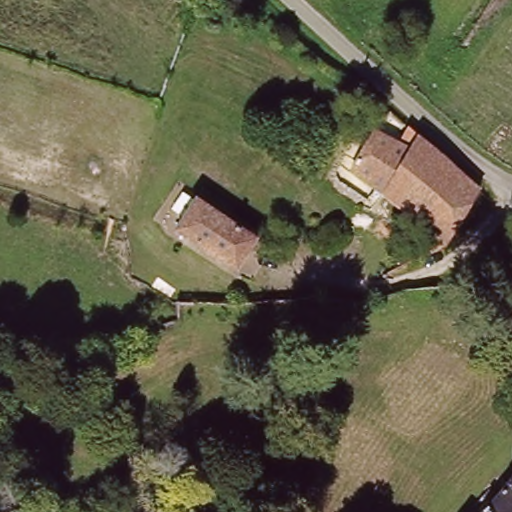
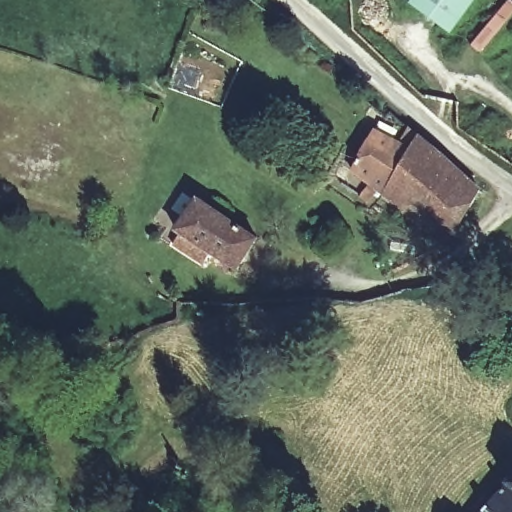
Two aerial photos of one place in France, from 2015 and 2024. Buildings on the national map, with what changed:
new [(409,3),(411,0),(476,0),(451,33),(409,3)]
unchanged [(408,155),(420,139),(481,194),(453,251),(375,190),(348,169),(371,123),(408,155)]
unchanged [(261,234),(242,271),(175,237),(192,201),(203,205),(261,234)]
unchanged [(487,495),(496,499),(512,480),(512,512),(472,512),(487,495)]

